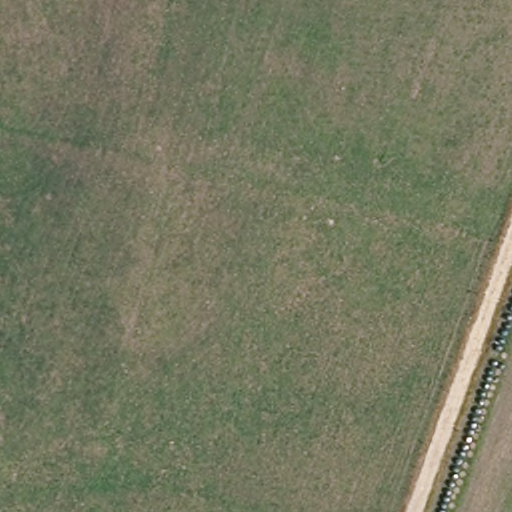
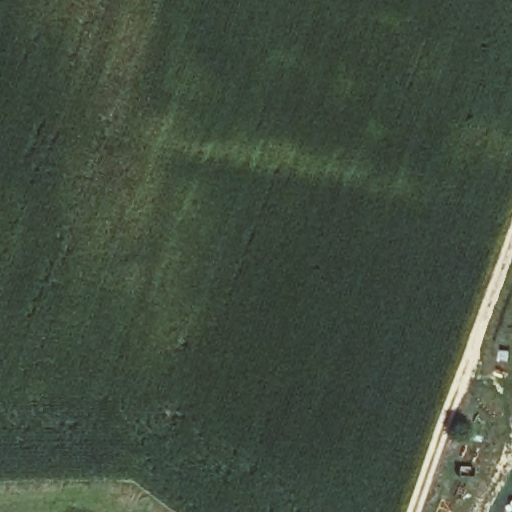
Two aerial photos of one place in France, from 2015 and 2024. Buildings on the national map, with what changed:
[]

